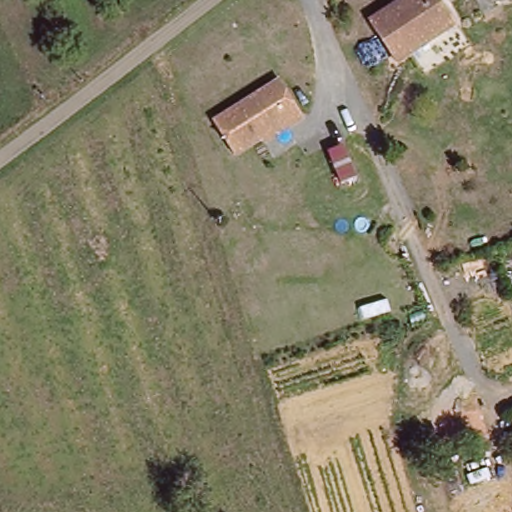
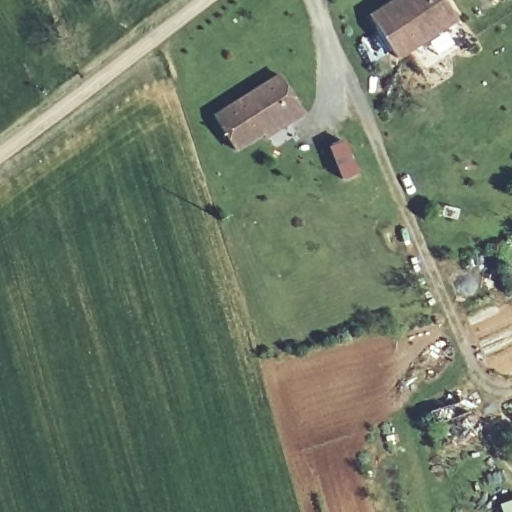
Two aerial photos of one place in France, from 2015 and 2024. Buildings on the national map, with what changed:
unchanged [(459,22),(403,61),(375,20),(404,0),(443,0),(459,22)]
unchanged [(262,140),(234,158),(213,124),(280,82),(304,120),(288,131),(265,145),(262,140)]

